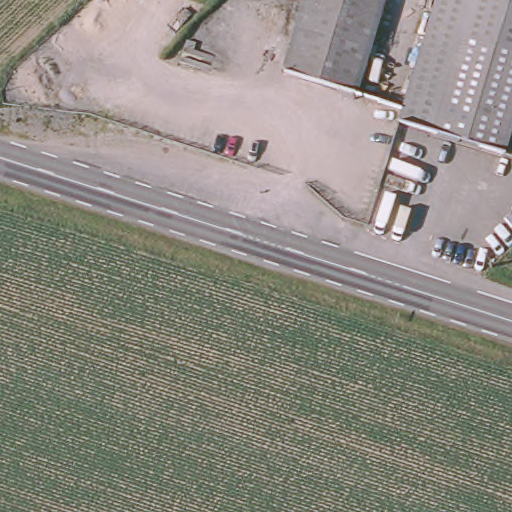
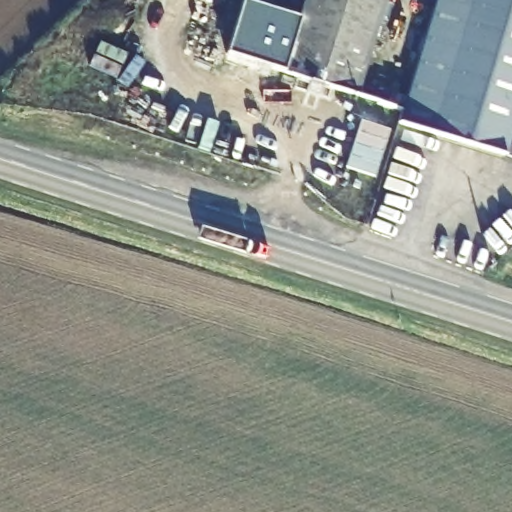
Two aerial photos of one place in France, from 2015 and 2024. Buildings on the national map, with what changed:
new [(248,0),(298,16),(283,71),(226,54),(244,0),(248,0)]
unchanged [(385,0),(355,97),(282,74),(303,0),(385,0)]
unchanged [(435,0),(503,0),(512,3),(512,137),(505,160),(430,135),(396,124),(435,0)]

